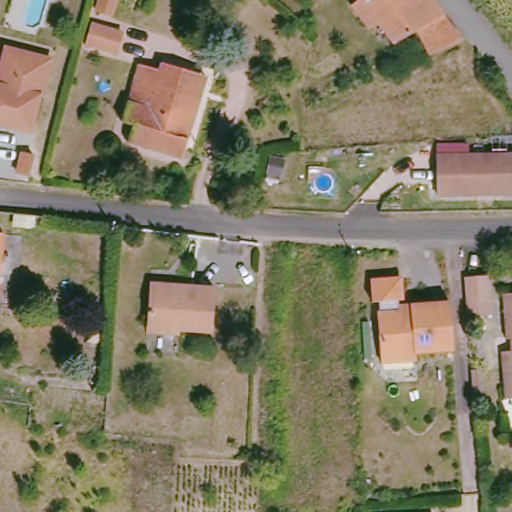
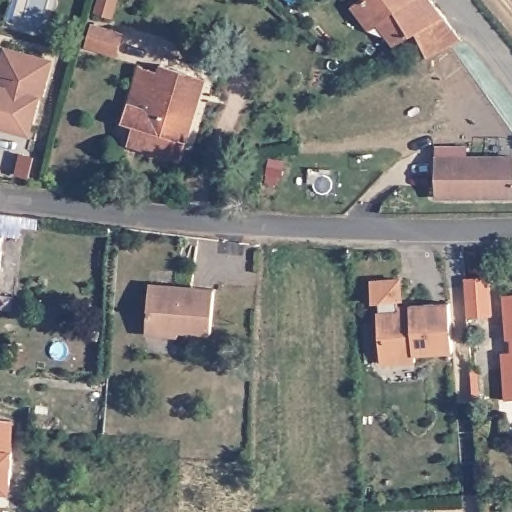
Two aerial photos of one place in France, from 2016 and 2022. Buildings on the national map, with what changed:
unchanged [(386,34),(377,21),(369,27),(353,6),(360,0),(431,0),(444,16),(462,40),(428,56),(416,32),(395,45),(386,34)]
unchanged [(116,54),(86,45),(91,24),(122,33),(116,54)]
unchanged [(39,99),(29,135),(0,126),(0,86),(3,77),(0,75),(0,70),(6,49),(41,59),(51,62),(46,82),(42,100),(39,99)]
unchanged [(186,164),(133,148),(139,130),(132,128),(128,126),(133,108),(144,70),(163,75),(166,69),(194,77),(211,82),(205,104),(193,144),(186,164)]
unchanged [(436,157),(512,156),(512,194),(436,195),(436,157)]
unchanged [(271,158),(283,160),(280,176),(267,174),(271,158)]
unchanged [(9,239),(6,290),(0,290),(0,238),(9,239)]
unchanged [(467,317),(464,278),(489,276),(493,315),(467,317)]
unchanged [(401,301),(401,311),(384,312),(384,301),(374,303),(372,279),(404,277),(407,300),(401,301)]
unchanged [(147,327),(150,285),(181,286),(215,289),(212,332),(179,330),(179,335),(161,333),(146,332),(147,327)]
unchanged [(502,352),(511,351),(510,339),(506,340),(502,295),(512,294),(512,399),(504,400),(502,352)]
unchanged [(381,354),(378,313),(411,310),(411,306),(451,302),(454,350),(414,353),(416,360),(396,362),(381,363),(381,354)]
unchanged [(479,401),(474,402),(471,370),(478,370),(479,401)]
new [(0,490),(0,419),(10,420),(8,483),(8,490),(0,490)]

